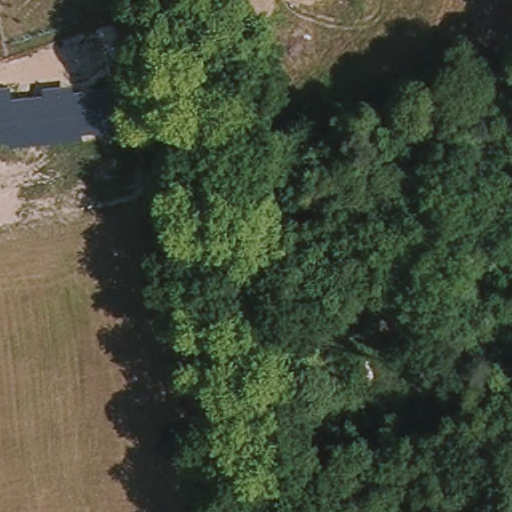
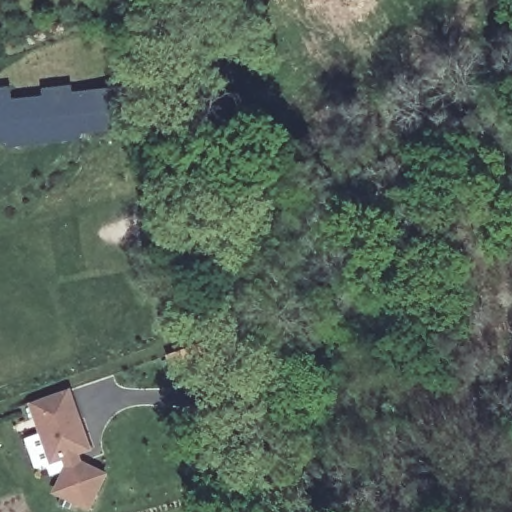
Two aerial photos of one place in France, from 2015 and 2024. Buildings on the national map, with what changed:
unchanged [(10,99),(44,95),(44,88),(71,85),(72,92),(102,87),(107,131),(82,135),(82,143),(8,150),(7,145),(0,146),(0,88),(10,86),(10,99)]
new [(67,462),(52,467),(30,405),(72,391),(92,451),(77,457),(110,473),(91,512),(90,512),(54,493),(67,462)]

